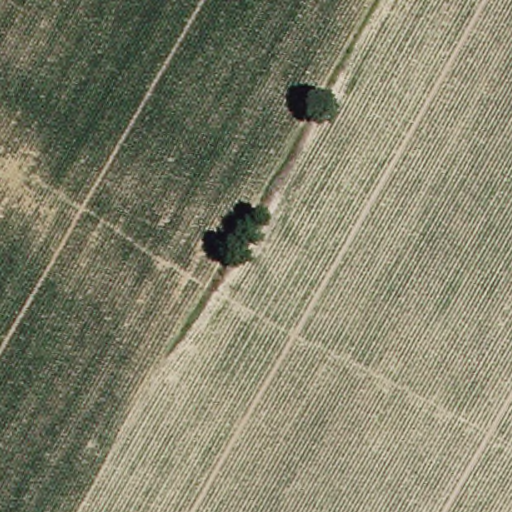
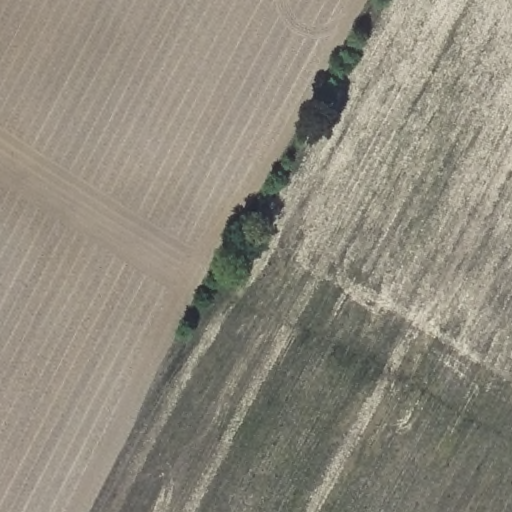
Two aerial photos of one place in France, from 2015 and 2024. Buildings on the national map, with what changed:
[]

